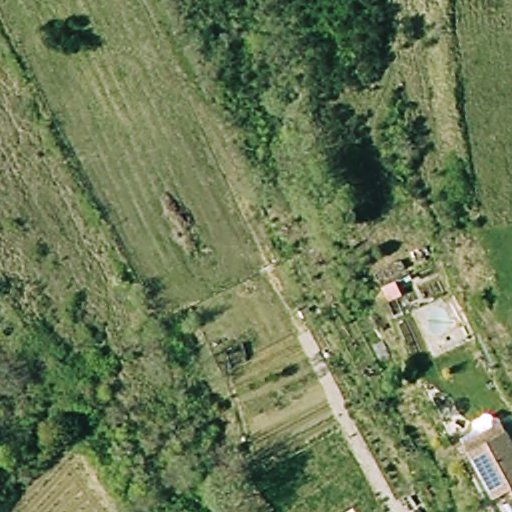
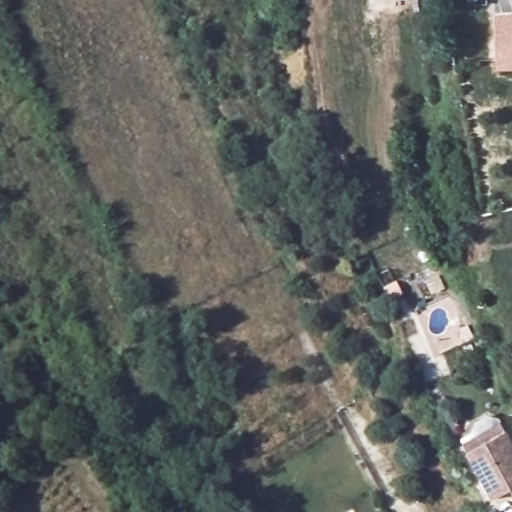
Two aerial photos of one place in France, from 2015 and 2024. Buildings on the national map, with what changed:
new [(512,69),(498,70),(495,14),(512,13),(512,69)]
unchanged [(497,420),(512,444),(512,496),(495,468),(472,481),(453,444),(497,420)]
new [(501,512),(492,512),(499,509),(501,512)]

